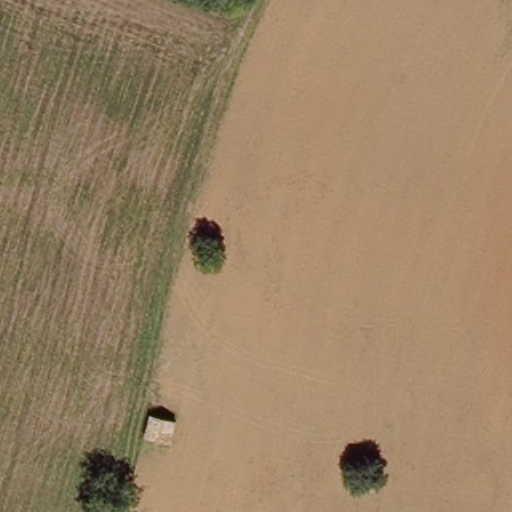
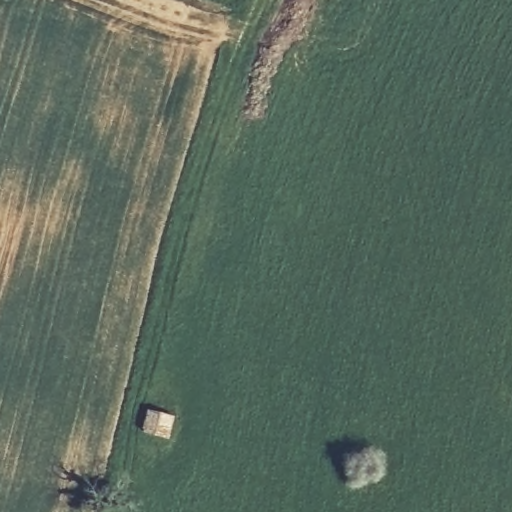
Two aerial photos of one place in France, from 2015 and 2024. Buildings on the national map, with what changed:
unchanged [(148,412),(167,415),(164,438),(143,433),(148,412)]

